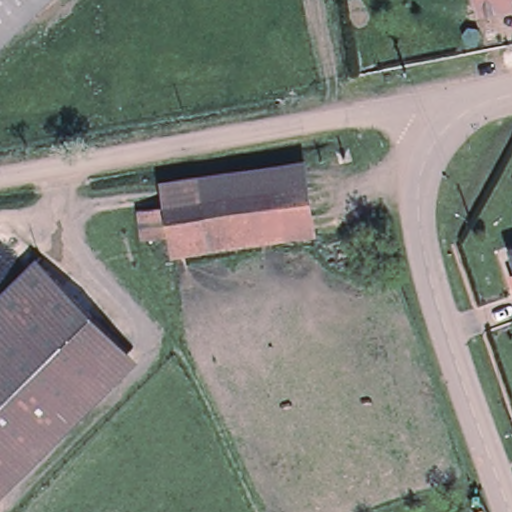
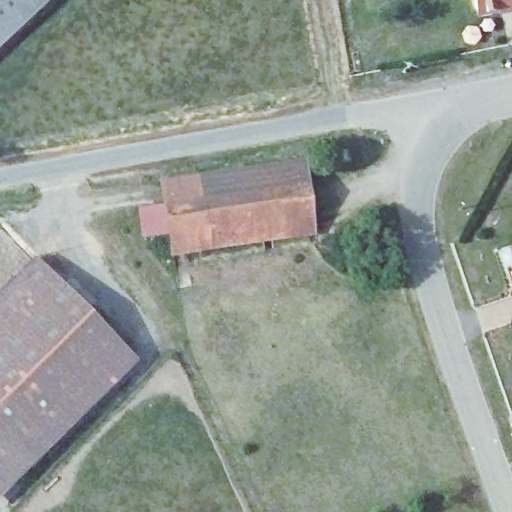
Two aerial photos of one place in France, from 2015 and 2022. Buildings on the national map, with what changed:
unchanged [(44,0),(0,42),(0,0),(44,0)]
unchanged [(469,0),(512,0),(512,13),(473,20),(471,13),(469,0)]
unchanged [(318,235),(172,256),(168,234),(140,237),(136,208),(161,204),(159,179),(306,156),(318,235)]
unchanged [(511,250),(512,250),(512,255),(511,250)]
unchanged [(139,360),(0,495),(0,295),(38,258),(139,360)]

